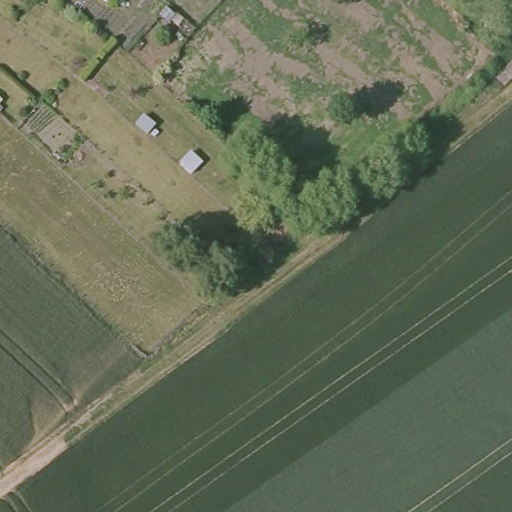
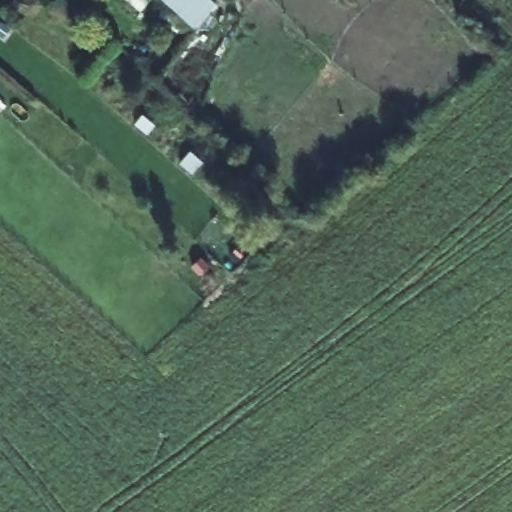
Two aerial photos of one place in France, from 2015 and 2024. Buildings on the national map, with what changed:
new [(163,0),(215,0),(218,4),(195,29),(187,22),(177,33),(171,7),(163,0)]

